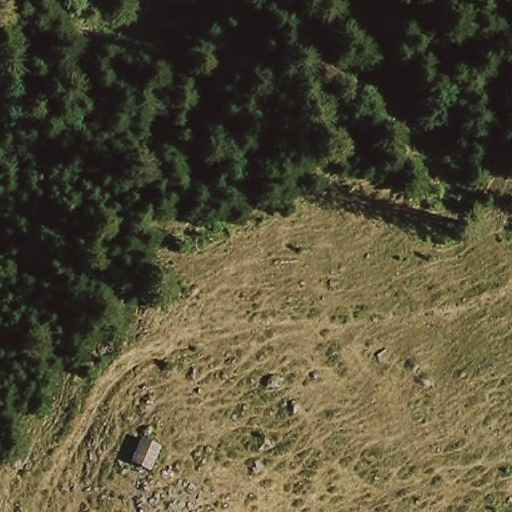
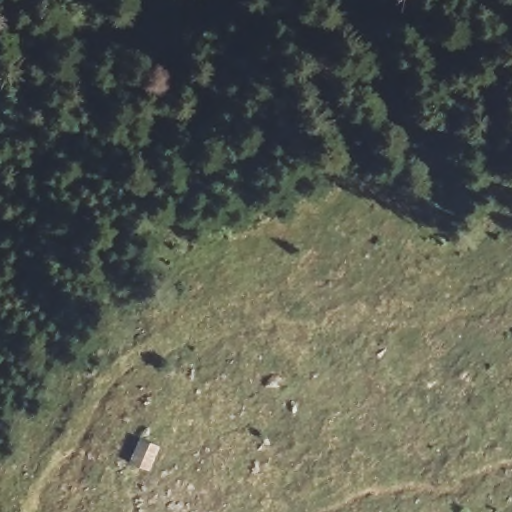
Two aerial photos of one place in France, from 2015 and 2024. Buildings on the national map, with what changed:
unchanged [(141,438),(158,445),(146,471),(125,461),(141,438)]

